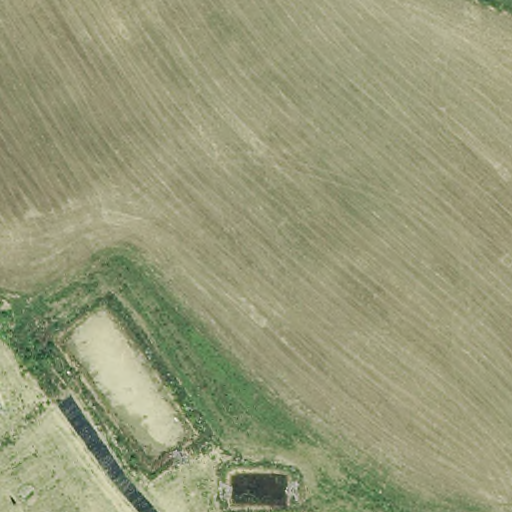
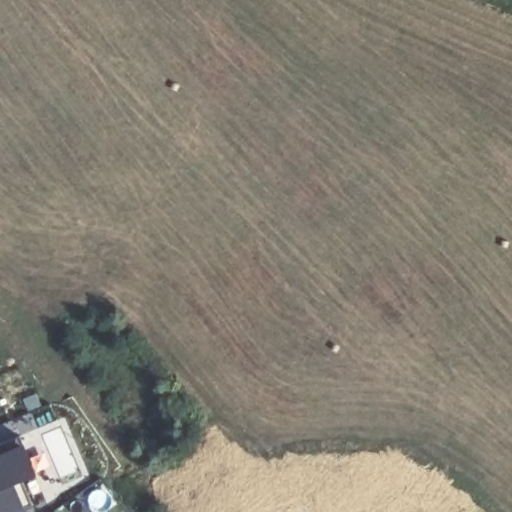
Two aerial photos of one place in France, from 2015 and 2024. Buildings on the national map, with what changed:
new [(25,450),(35,475),(22,480),(31,503),(24,508),(15,512),(0,512),(0,445),(20,437),(25,450)]

